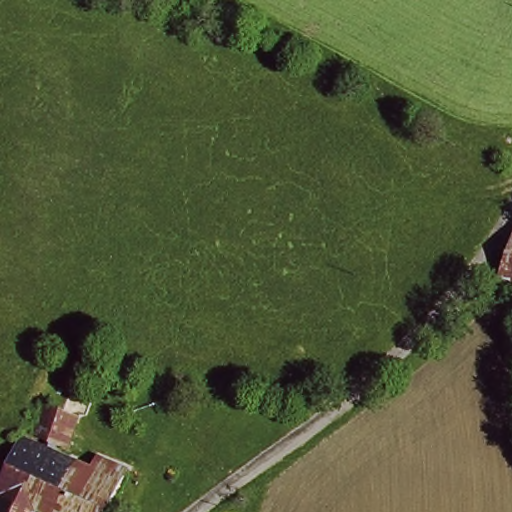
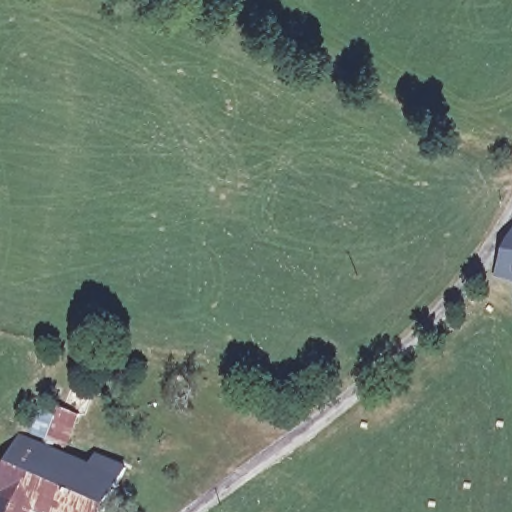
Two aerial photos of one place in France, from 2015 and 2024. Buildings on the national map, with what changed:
unchanged [(512,261),(512,280),(503,278),(512,261)]
unchanged [(40,423),(56,400),(87,420),(69,445),(40,423)]
unchanged [(90,470),(105,455),(134,476),(106,512),(62,512),(49,502),(42,512),(0,512),(0,492),(37,438),(90,470)]

